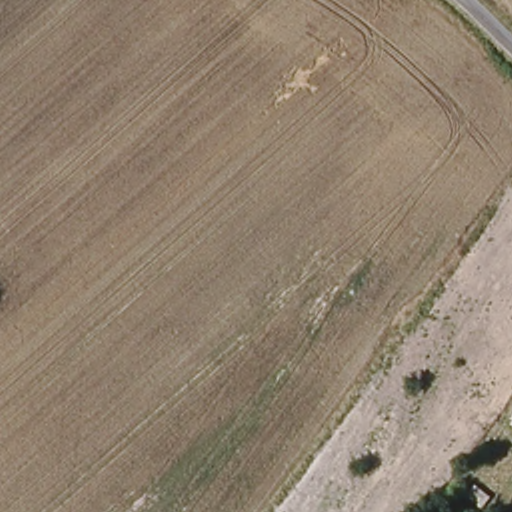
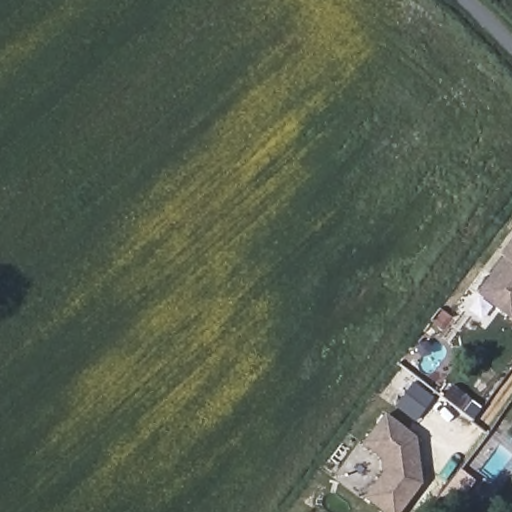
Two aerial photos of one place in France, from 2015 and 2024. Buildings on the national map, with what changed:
new [(476,292),(504,257),(499,253),(512,236),(512,317),(511,319),(476,292)]
new [(416,436),(424,483),(402,512),(383,512),(364,497),(382,473),(380,458),(362,444),(386,412),(416,436)]
demolished [(512,420),(512,422),(511,421),(512,420)]

